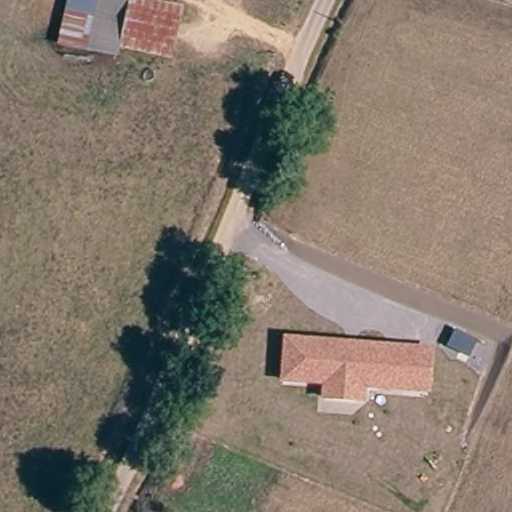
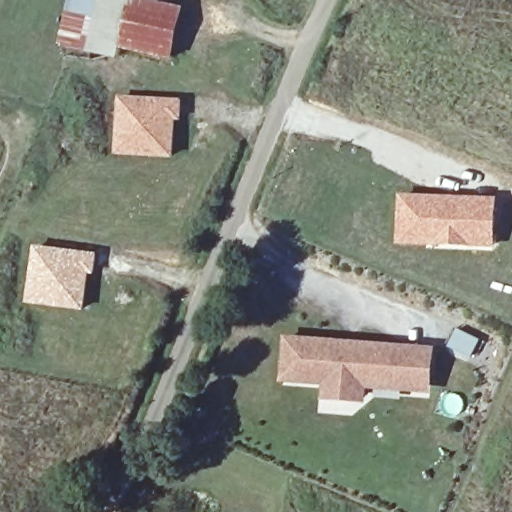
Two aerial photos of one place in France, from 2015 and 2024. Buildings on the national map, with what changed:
unchanged [(182,5),(172,54),(203,61),(201,70),(170,64),(169,60),(116,47),(111,60),(84,52),(53,43),(64,0),(158,0),(182,5)]
new [(117,94),(183,97),(182,121),(177,121),(174,159),(114,155),(117,94)]
new [(399,192),(497,195),(495,248),(397,244),(399,192)]
new [(32,244),(98,251),(95,275),(90,275),(85,311),(23,303),(32,244)]
new [(455,327),(478,338),(468,358),(444,346),(455,327)]
unchanged [(434,348),(432,395),(368,392),(367,407),(322,403),(322,385),(282,381),(285,336),(434,348)]

